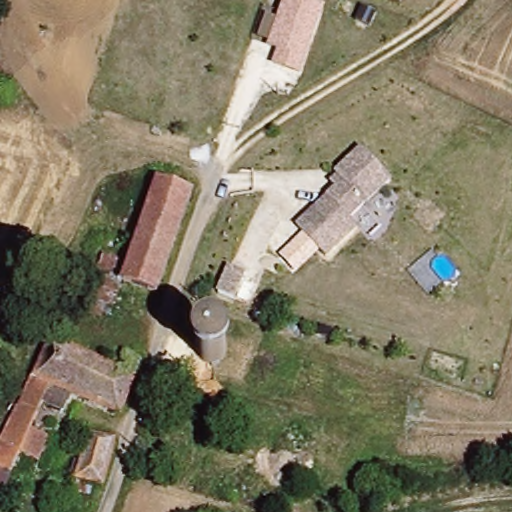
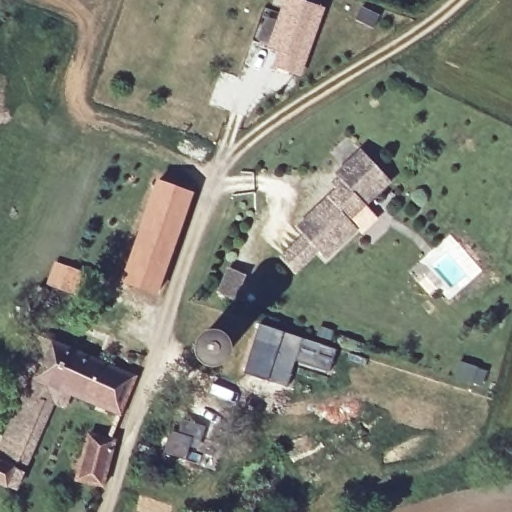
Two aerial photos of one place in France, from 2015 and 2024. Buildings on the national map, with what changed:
unchanged [(303,76),(269,66),(274,50),(266,47),(282,0),(303,0),(326,7),(303,76)]
unchanged [(394,185),(353,227),(359,232),(325,262),(294,230),(333,192),(325,184),(363,149),(394,185)]
unchanged [(188,195),(154,296),(121,285),(156,184),(188,195)]
unchanged [(216,292),(226,266),(247,273),(236,301),(216,292)]
new [(259,322),(315,341),(320,325),(334,330),(329,346),(337,348),(329,373),(295,362),(287,387),(243,372),(259,322)]
unchanged [(0,436),(47,338),(123,376),(111,405),(56,377),(13,467),(0,460),(0,436)]
unchanged [(83,435),(115,448),(104,497),(70,480),(83,435)]

